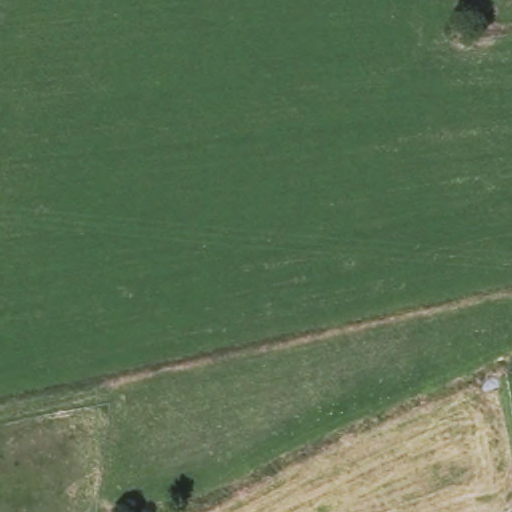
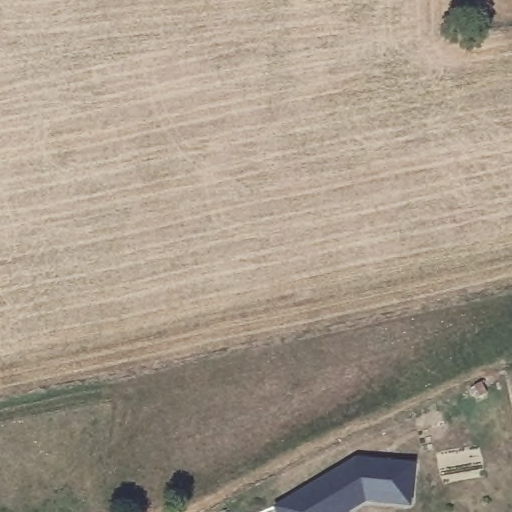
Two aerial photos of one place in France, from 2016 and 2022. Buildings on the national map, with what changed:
new [(273,507),(356,457),(415,462),(411,507),(365,503),(351,512),(276,512),(273,507)]

